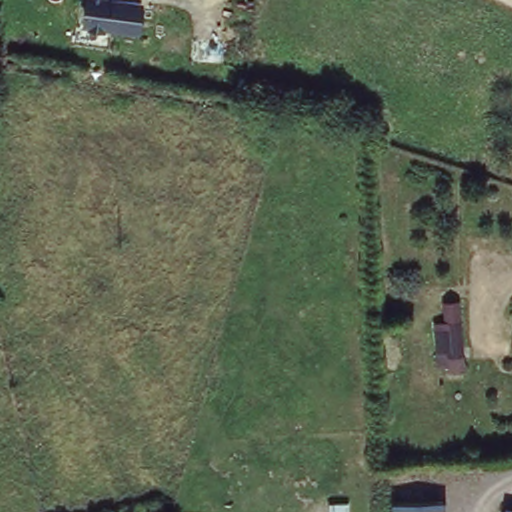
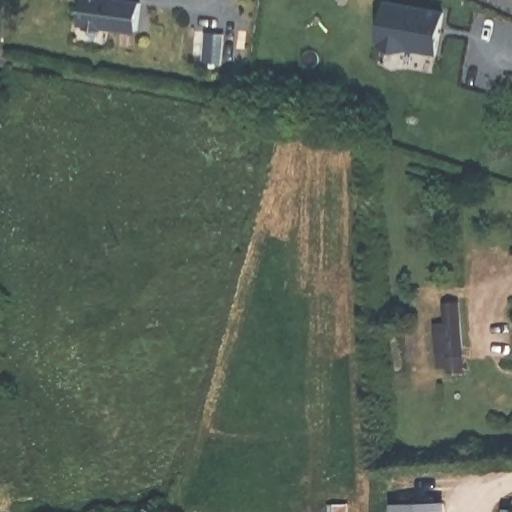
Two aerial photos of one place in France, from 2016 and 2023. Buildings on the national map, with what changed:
unchanged [(140,33),(81,27),(83,0),(144,0),(140,33)]
new [(387,0),(444,9),(438,48),(381,39),(387,0)]
unchanged [(467,349),(434,351),(432,320),(444,319),(443,297),(462,296),(467,349)]
unchanged [(391,512),(391,498),(450,497),(450,512),(391,512)]

